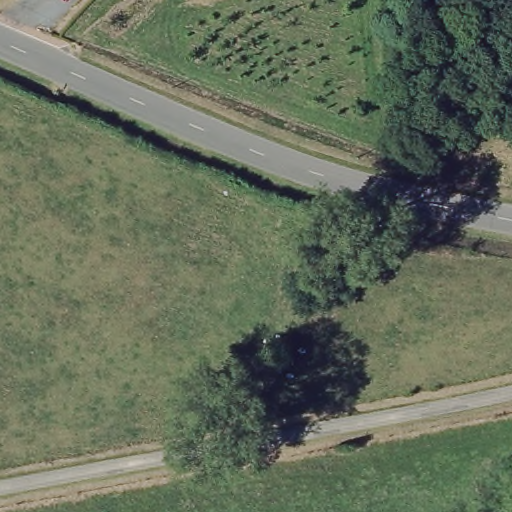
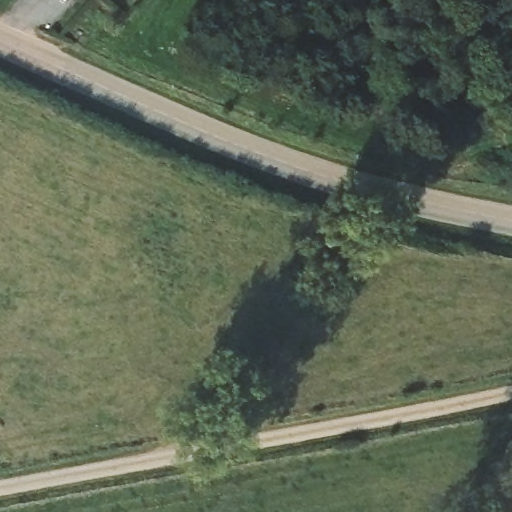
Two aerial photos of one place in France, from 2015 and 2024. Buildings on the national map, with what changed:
[]

